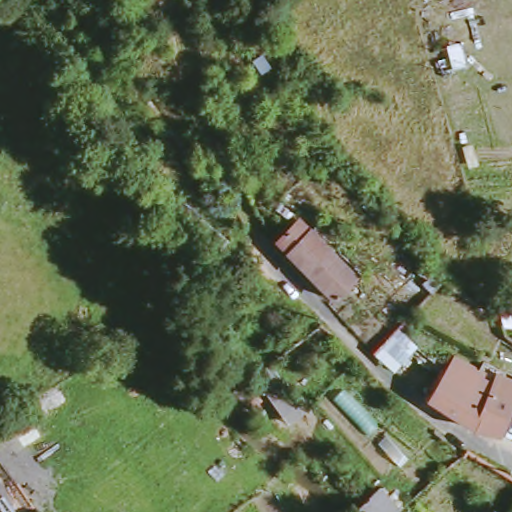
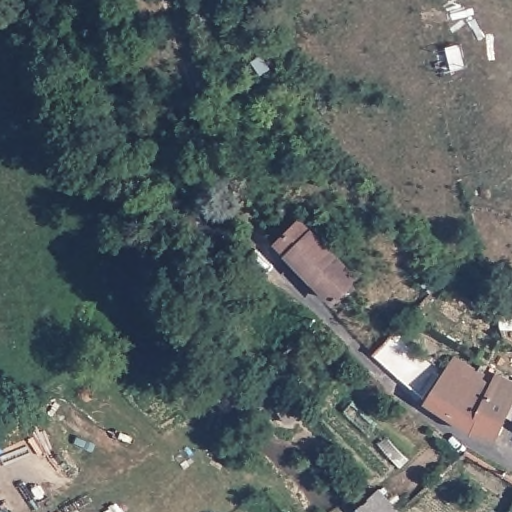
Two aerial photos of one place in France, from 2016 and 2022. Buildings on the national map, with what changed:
unchanged [(206,155),(215,178),(200,186),(190,163),(206,155)]
unchanged [(275,244),(307,219),(353,277),(320,306),(275,244)]
unchanged [(493,379),(497,373),(512,380),(512,413),(500,441),(476,433),(425,404),(455,359),(493,379)]
unchanged [(304,409),(289,425),(248,381),(263,367),(304,409)]
unchanged [(361,497),(380,481),(399,500),(386,512),(373,512),(361,497)]

